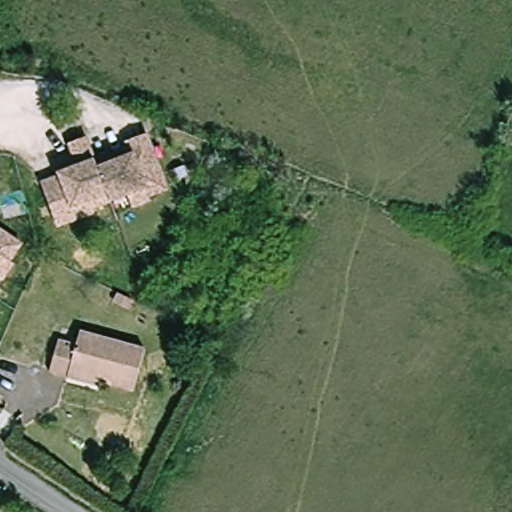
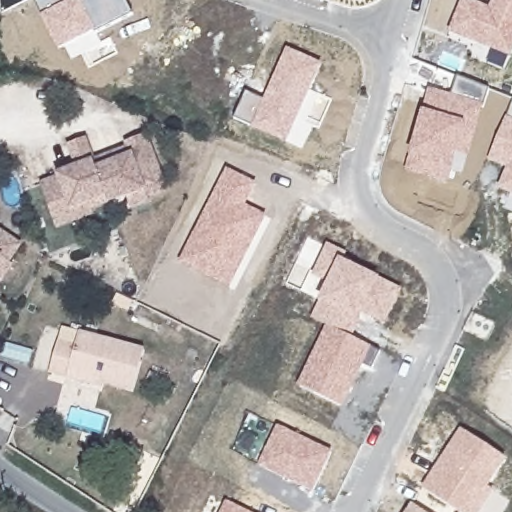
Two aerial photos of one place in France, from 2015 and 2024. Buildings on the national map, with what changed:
new [(95,35),(93,31),(58,48),(42,16),(34,0),(64,0),(66,4),(73,0),(81,0),(83,3),(87,0),(126,0),(133,14),(95,35)]
new [(509,56),(448,32),(462,0),(472,0),(489,6),(492,0),(512,0),(512,51),(509,56)]
new [(288,48),(321,65),(286,144),(252,128),(253,126),(236,119),(248,92),(264,100),(288,48)]
new [(469,156),(457,154),(453,169),(449,183),(407,170),(409,157),(424,111),(428,89),(452,95),(459,76),(489,89),(484,106),(469,156)]
new [(509,116),(512,108),(512,194),(497,189),(506,168),(489,161),(507,116),(509,116)]
unchanged [(61,236),(56,223),(45,192),(64,185),(63,183),(83,176),(74,153),(90,146),(98,170),(133,157),(131,151),(151,144),(160,168),(171,200),(153,207),(154,211),(136,218),(131,205),(95,218),(98,223),(61,236)]
new [(266,216),(228,288),(181,263),(227,168),(257,184),(246,205),(266,216)]
unchanged [(13,268),(16,271),(5,288),(0,284),(0,236),(23,252),(13,268)]
new [(311,317),(319,303),(328,284),(313,276),(328,245),(348,254),(344,261),(381,280),(402,288),(385,324),(364,313),(353,337),(371,346),(344,405),(298,385),(325,326),(311,317)]
unchanged [(69,377),(49,370),(59,338),(78,343),(82,329),(146,348),(133,390),(104,381),(103,387),(69,377)]
new [(259,466),(277,425),(331,452),(313,492),(259,466)]
new [(495,492),(481,512),(459,512),(422,487),(461,428),(507,458),(488,486),(495,492)]
new [(226,501),(250,512),(220,512),(226,501)]
new [(412,503),(425,512),(406,512),(412,503)]

